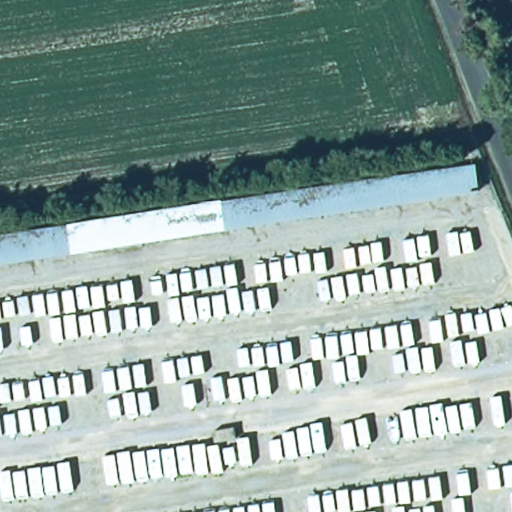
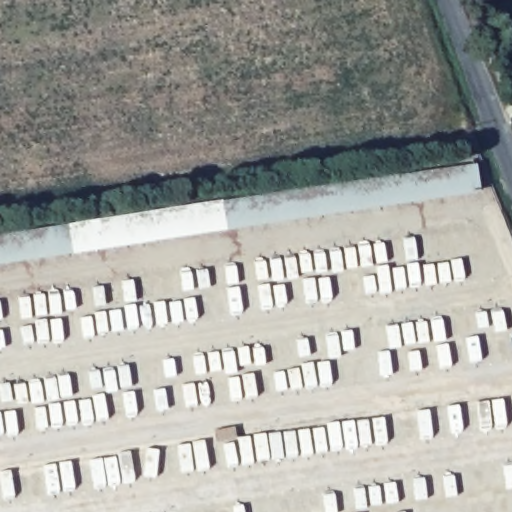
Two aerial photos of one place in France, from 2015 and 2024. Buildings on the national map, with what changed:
unchanged [(479,193),(0,265),(0,231),(472,161),(479,193)]

